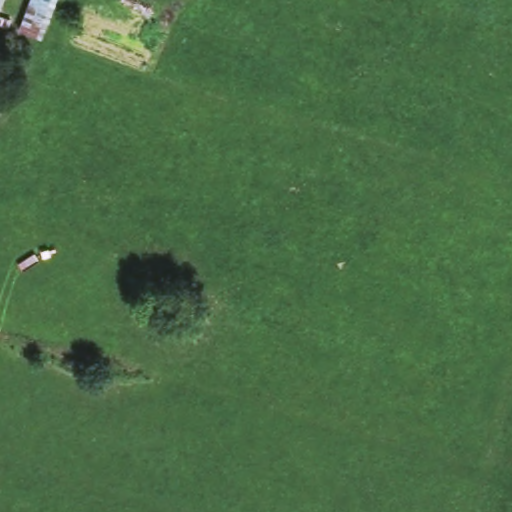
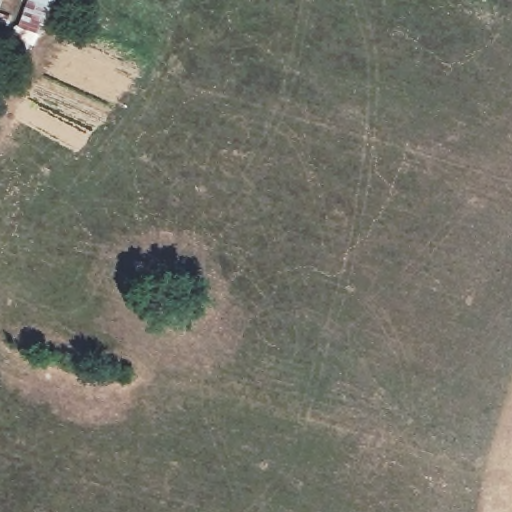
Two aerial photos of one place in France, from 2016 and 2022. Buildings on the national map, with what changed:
unchanged [(16,25),(26,0),(53,0),(40,35),(16,25)]

